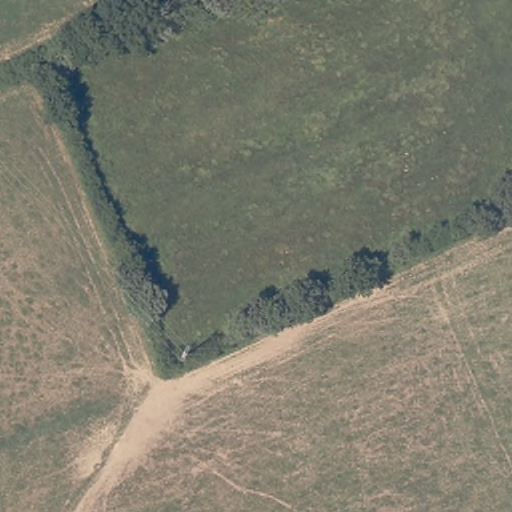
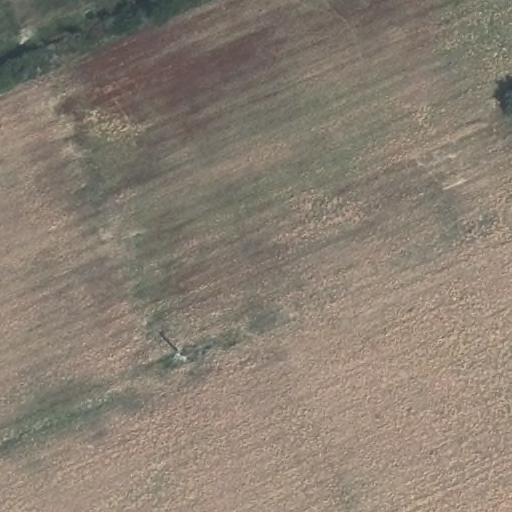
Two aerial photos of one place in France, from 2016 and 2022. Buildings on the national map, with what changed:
[]

